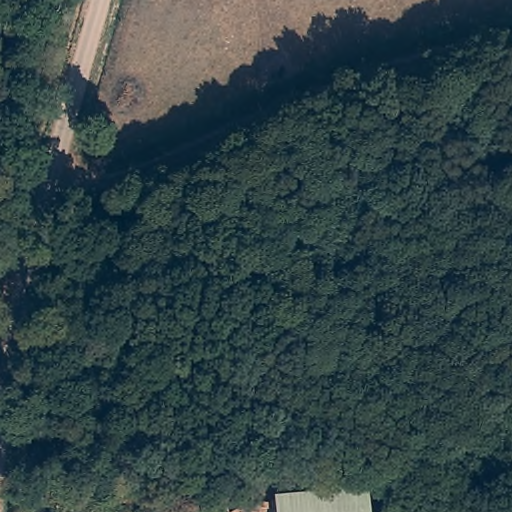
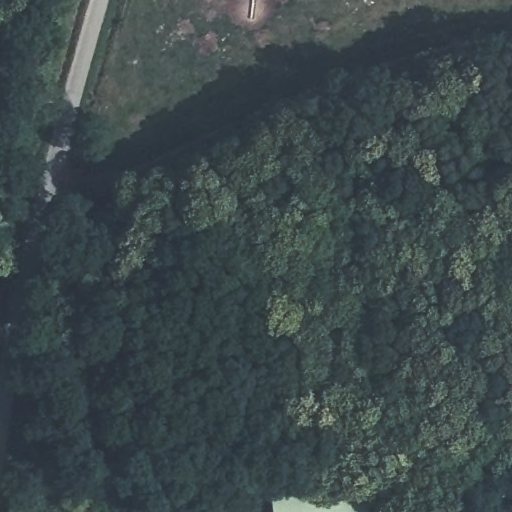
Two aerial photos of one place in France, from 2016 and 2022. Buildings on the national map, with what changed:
unchanged [(373,512),(275,512),(274,495),(371,487),(373,512)]

